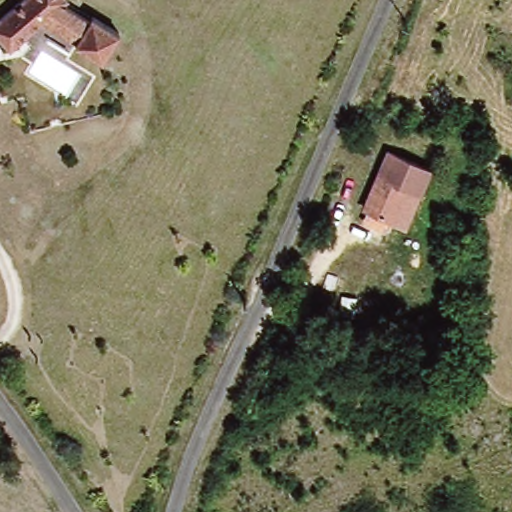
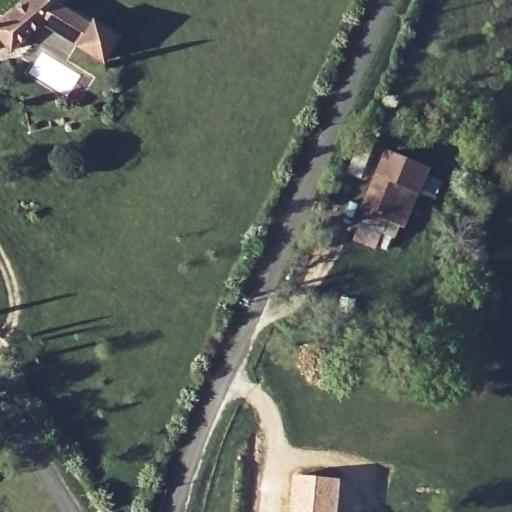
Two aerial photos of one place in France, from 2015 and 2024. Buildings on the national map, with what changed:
unchanged [(70,0),(67,3),(92,19),(99,18),(121,33),(104,59),(93,51),(77,40),(47,19),(12,46),(0,31),(0,18),(22,0),(70,0)]
unchanged [(369,208),(391,149),(432,166),(424,190),(410,224),(396,219),(369,208)]
unchanged [(352,333),(352,315),(367,314),(366,333),(352,333)]
new [(296,476),(339,480),(336,512),(293,512),(296,476)]

